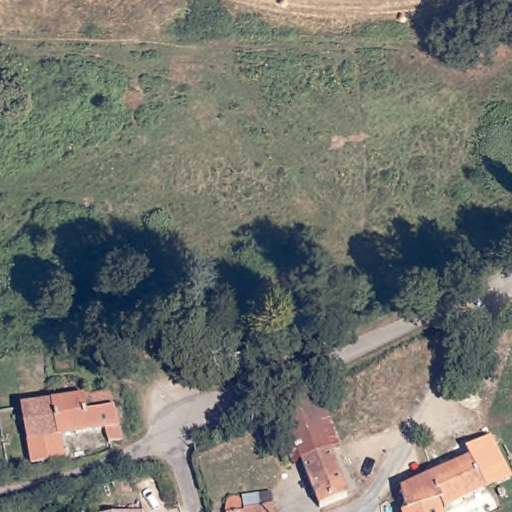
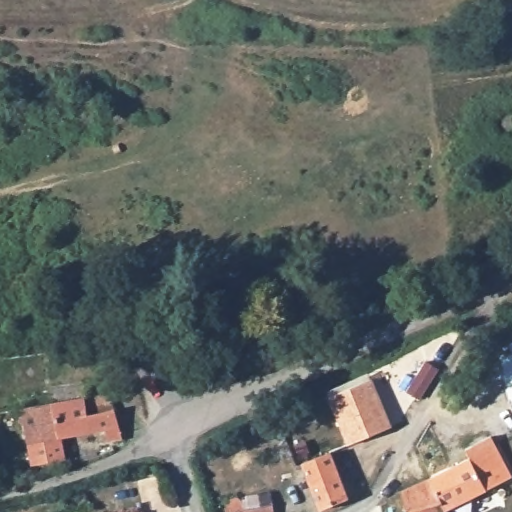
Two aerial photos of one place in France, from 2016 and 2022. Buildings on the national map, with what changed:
new [(346,445),(326,396),(372,378),(390,427),(346,445)]
unchanged [(120,438),(107,440),(102,422),(84,426),(78,394),(109,387),(117,419),(121,424),(120,438)]
unchanged [(37,403),(78,394),(84,426),(62,432),(67,454),(34,464),(21,408),(37,403)]
unchanged [(458,466),(484,456),(497,484),(491,487),(455,502),(459,512),(444,512),(442,509),(430,479),(458,466)]
unchanged [(341,469),(354,506),(338,512),(321,512),(309,479),(341,469)]
unchanged [(430,479),(442,509),(434,512),(406,512),(400,493),(430,479)]
unchanged [(221,504),(222,497),(229,493),(236,494),(244,502),(272,494),(279,512),(223,512),(221,504)]
unchanged [(442,509),(444,512),(434,512),(442,509)]
unchanged [(144,510),(145,512),(119,512),(144,510)]

